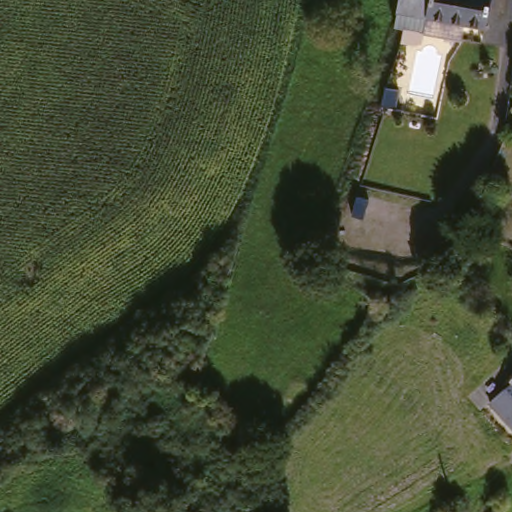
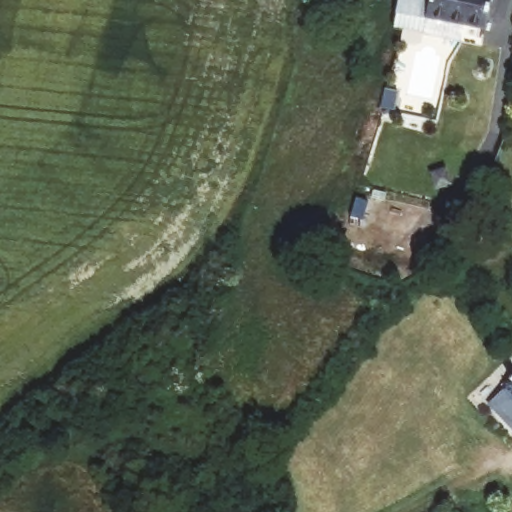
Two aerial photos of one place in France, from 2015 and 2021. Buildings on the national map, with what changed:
unchanged [(429,15),(430,31),(397,31),(397,2),(397,0),(487,0),(487,17),(429,15)]
unchanged [(494,401),(512,385),(512,420),(494,401)]

